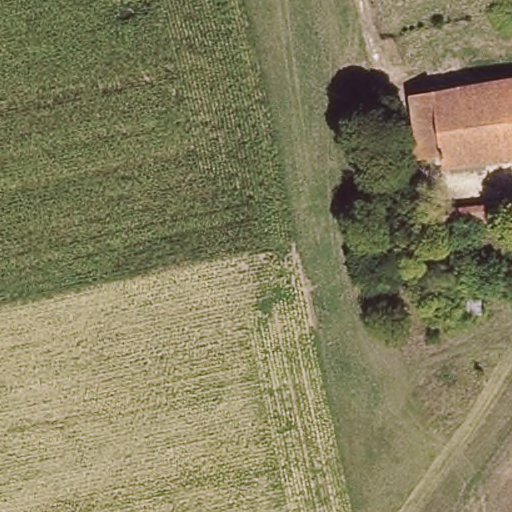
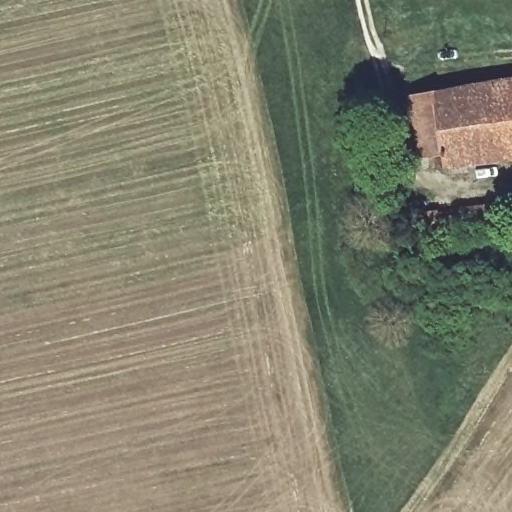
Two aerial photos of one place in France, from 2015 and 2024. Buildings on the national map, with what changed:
unchanged [(440,150),(425,152),(419,89),(512,80),(512,160),(442,167),(440,150)]
unchanged [(437,215),(491,209),(493,227),(438,232),(437,215)]

